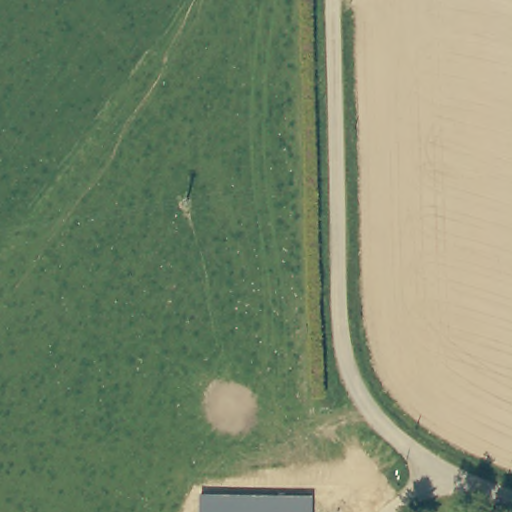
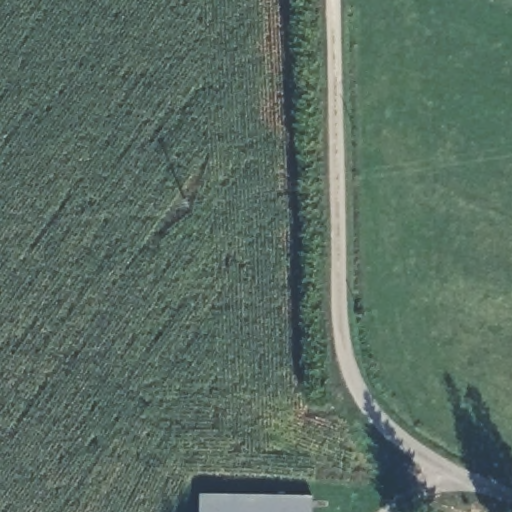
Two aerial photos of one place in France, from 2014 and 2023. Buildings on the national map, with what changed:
unchanged [(201,495),(311,496),(310,512),(201,512),(201,495)]

